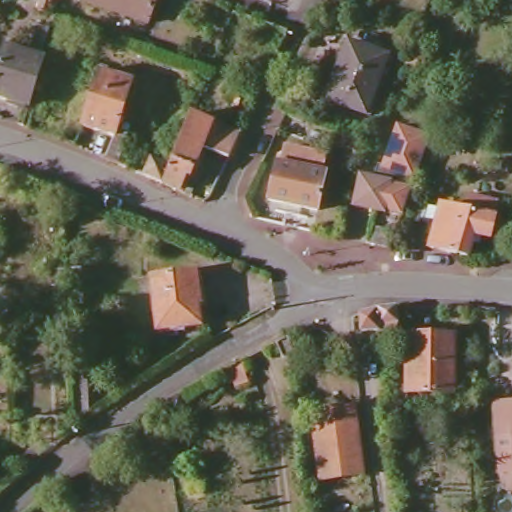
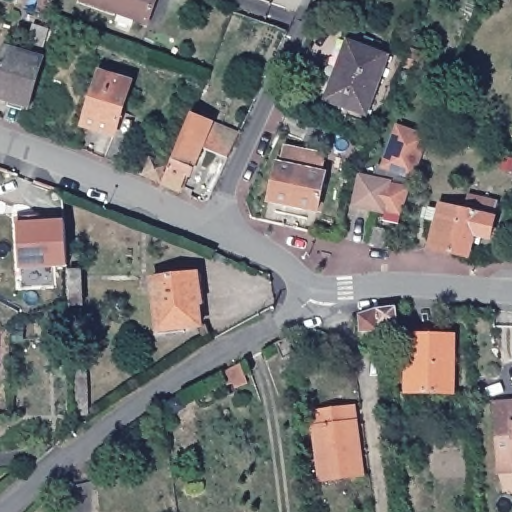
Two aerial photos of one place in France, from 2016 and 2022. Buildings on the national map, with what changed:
unchanged [(57,3),(53,17),(41,12),(45,0),(57,3)]
unchanged [(146,25),(78,0),(155,0),(146,25)]
unchanged [(29,27),(43,31),(35,59),(40,60),(26,107),(0,100),(0,53),(1,50),(20,55),(29,27)]
unchanged [(389,58),(369,116),(332,103),(352,45),(389,58)]
unchanged [(129,76),(119,109),(133,112),(118,156),(105,150),(113,127),(80,116),(94,66),(129,76)]
unchanged [(156,160),(173,167),(194,117),(241,136),(231,159),(205,149),(193,177),(190,176),(183,193),(166,186),(148,177),(156,160)]
unchanged [(379,165),(383,166),(397,126),(428,137),(418,166),(402,212),(385,209),(384,209),(384,211),(353,205),(359,176),(369,177),(374,179),(376,172),(379,165)]
unchanged [(323,154),(321,171),(324,172),(318,209),(269,200),(277,156),(281,157),(283,147),(323,154)]
unchanged [(497,204),(488,241),(473,237),(468,258),(429,248),(440,206),(462,212),(467,196),(497,204)]
new [(65,268),(19,271),(15,224),(15,217),(46,216),(46,221),(63,221),(65,268)]
unchanged [(395,235),(394,249),(381,247),(386,232),(395,235)]
unchanged [(87,307),(73,307),(73,300),(71,272),(85,272),(87,307)]
unchanged [(201,327),(158,332),(153,279),(197,275),(201,327)]
unchanged [(403,325),(391,326),(392,341),(384,341),(382,310),(402,307),(403,325)]
unchanged [(437,341),(454,342),(454,388),(407,387),(407,332),(437,332),(437,341)]
unchanged [(295,361),(283,362),(280,346),(293,340),(295,361)]
unchanged [(397,370),(387,371),(386,350),(395,348),(397,370)]
unchanged [(93,424),(82,436),(79,371),(90,371),(93,424)]
unchanged [(491,393),(512,392),(512,451),(494,452),(491,393)]
unchanged [(362,476),(323,480),(316,413),(356,409),(362,476)]

